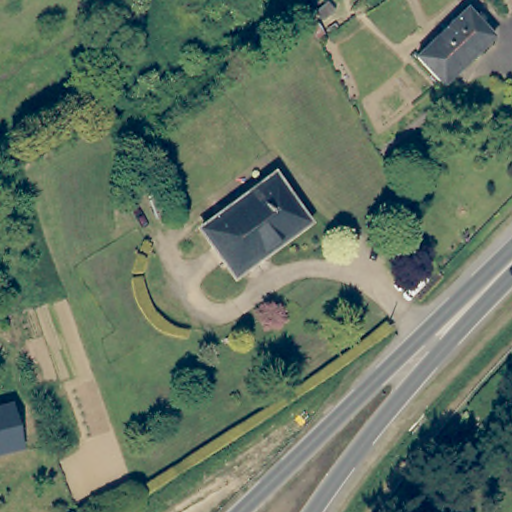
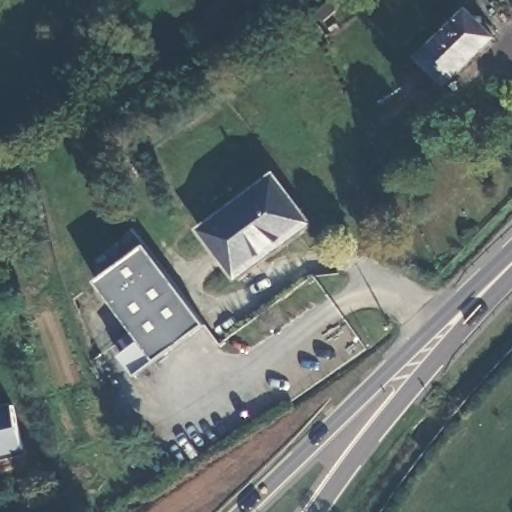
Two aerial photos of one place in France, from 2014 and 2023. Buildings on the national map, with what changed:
unchanged [(496,37),(447,86),(419,58),(470,9),(496,37)]
unchanged [(300,216),(278,232),(285,240),(262,258),(254,249),(230,269),(201,231),(273,179),(300,216)]
new [(147,246),(205,325),(156,361),(134,376),(120,355),(141,341),(99,282),(147,246)]
unchanged [(0,456),(0,409),(14,405),(26,449),(0,456)]

